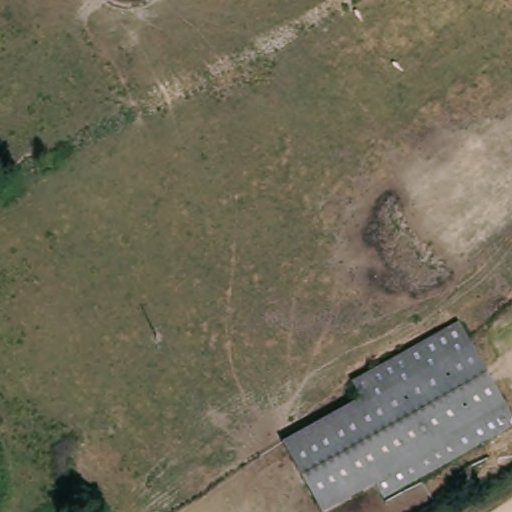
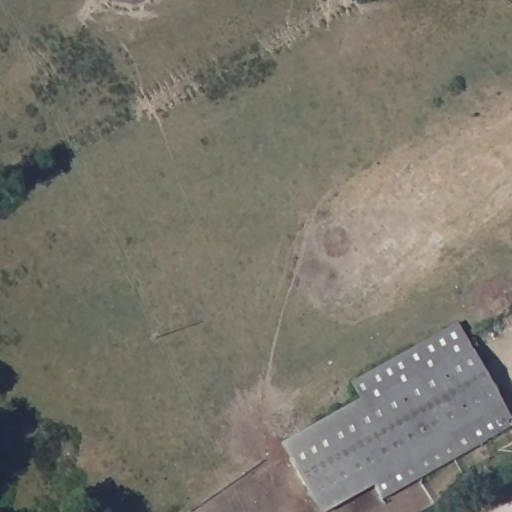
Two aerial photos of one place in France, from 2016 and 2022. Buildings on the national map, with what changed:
unchanged [(512,421),(512,423),(380,499),(371,484),(321,512),(319,512),(278,444),(332,413),(322,398),(457,322),(512,421)]

